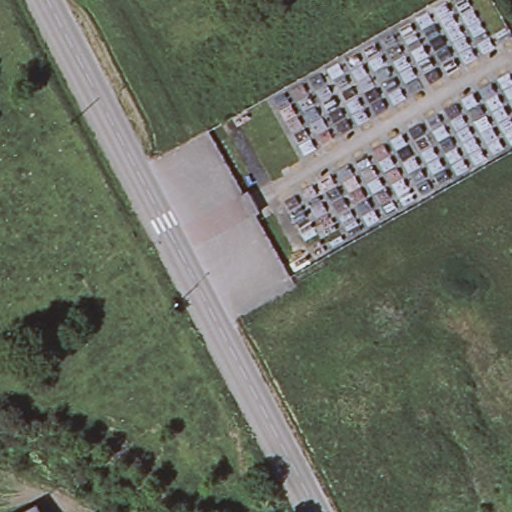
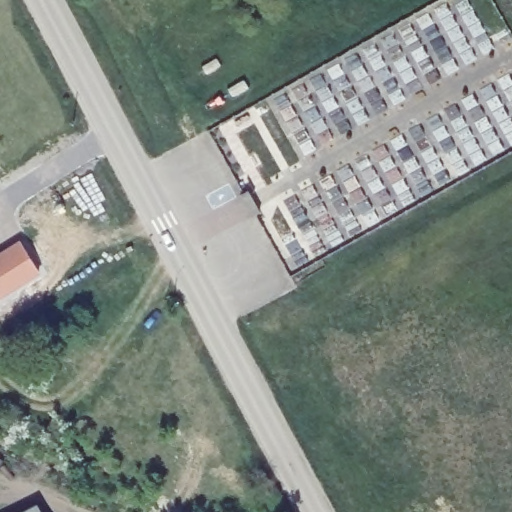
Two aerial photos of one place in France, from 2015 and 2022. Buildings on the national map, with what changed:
new [(39,271),(0,295),(0,254),(21,241),(39,271)]
unchanged [(22,512),(35,505),(39,512),(22,512)]

